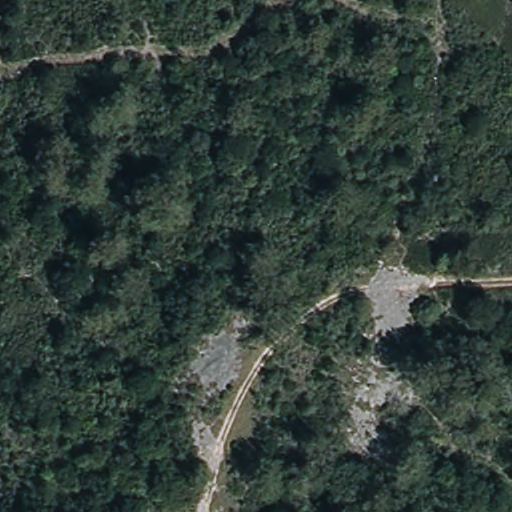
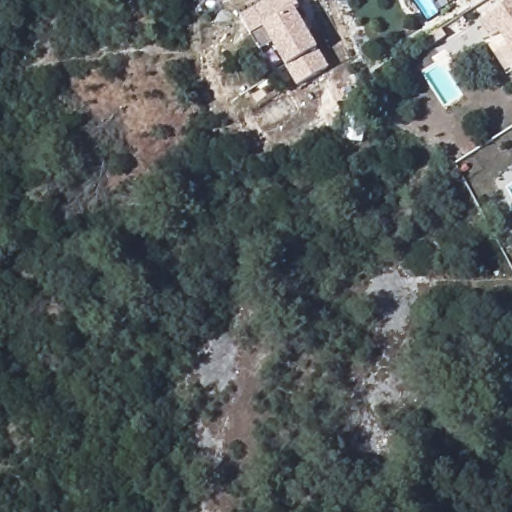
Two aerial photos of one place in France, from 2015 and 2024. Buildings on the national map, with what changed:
new [(251,36),(241,18),(272,0),(295,0),(299,7),(294,10),(328,68),(298,85),(273,44),(259,51),(251,36)]
new [(450,3),(448,0),(455,0),(450,3)]
new [(512,0),(512,51),(499,31),(492,36),(481,20),(512,0)]

